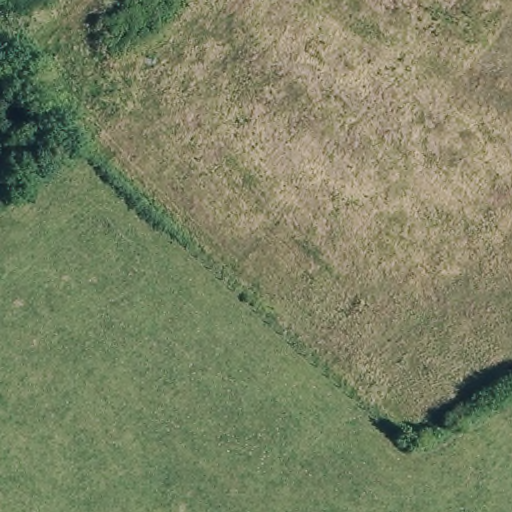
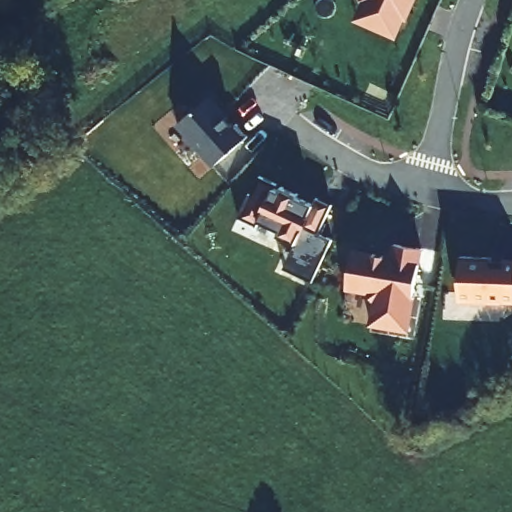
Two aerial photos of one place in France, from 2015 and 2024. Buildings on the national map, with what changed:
new [(392,44),(348,27),(361,0),(412,0),(392,44)]
new [(213,96),(235,127),(239,124),(248,135),(213,167),(178,126),(213,96)]
new [(301,196),(300,199),(315,205),(316,200),(331,206),(318,235),(303,228),(296,244),(278,236),(280,232),(260,223),(257,227),(238,219),(249,194),(251,195),(261,177),(301,196)]
new [(330,241),(312,281),(284,268),(296,244),(303,228),(318,235),(330,241)]
new [(354,250),(393,257),(395,244),(422,248),(408,330),(372,324),(376,301),(370,292),(347,288),(354,250)]
new [(460,304),(461,258),(512,259),(512,303),(460,304)]

